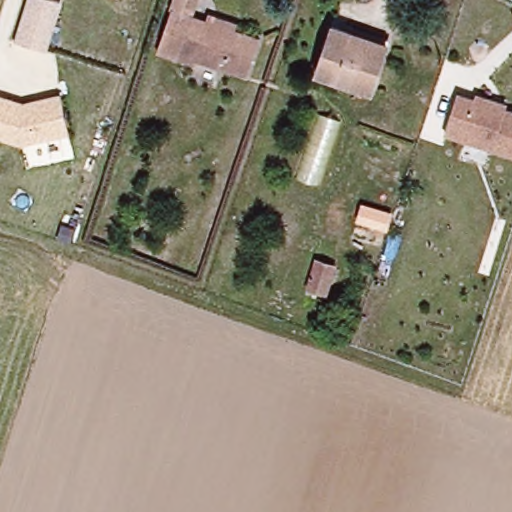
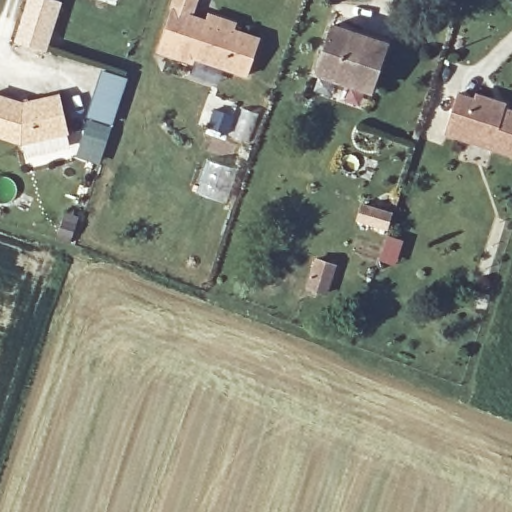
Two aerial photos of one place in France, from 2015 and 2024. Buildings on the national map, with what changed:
unchanged [(64,0),(47,52),(12,43),(26,0),(62,0),(64,0)]
unchanged [(247,70),(198,57),(197,62),(155,51),(170,7),(171,0),(195,0),(192,14),(257,35),(247,70)]
unchanged [(386,43),(368,89),(318,71),(332,24),(386,43)]
new [(75,156),(104,71),(128,79),(100,164),(75,156)]
unchanged [(21,100),(59,91),(68,132),(17,143),(0,138),(0,93),(21,100)]
unchanged [(455,100),(472,106),(474,101),(491,107),(504,111),(502,116),(512,119),(512,162),(443,139),(455,100)]
unchanged [(311,112),(333,121),(313,186),(290,180),(311,112)]
unchanged [(385,210),(380,225),(355,217),(360,201),(385,210)]
unchanged [(330,264),(320,293),(305,286),(314,257),(330,264)]
unchanged [(371,290),(371,291),(359,304),(350,298),(363,282),(371,290)]

